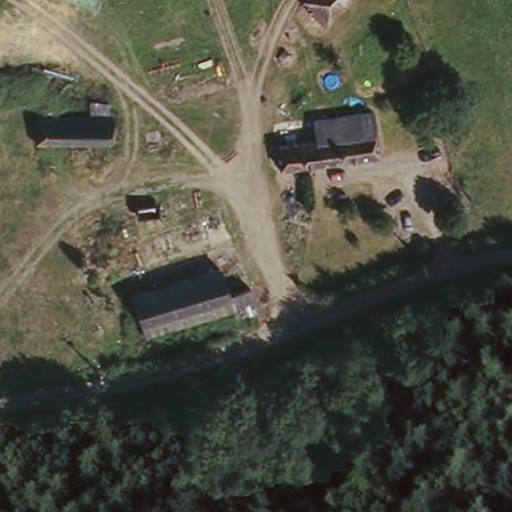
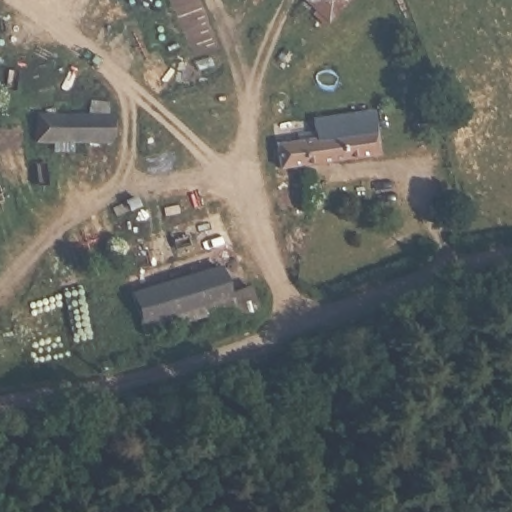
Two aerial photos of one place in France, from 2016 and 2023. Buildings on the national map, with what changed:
unchanged [(324,24),(299,2),(301,0),(344,0),(324,24)]
unchanged [(410,62),(412,74),(398,77),(396,64),(410,62)]
unchanged [(313,142),(311,121),(364,111),(374,154),(275,172),(271,149),(313,142)]
unchanged [(105,116),(103,142),(33,140),(36,115),(105,116)]
unchanged [(202,329),(200,319),(137,341),(131,324),(122,296),(215,264),(223,288),(245,281),(252,304),(230,311),(233,318),(202,329)]

